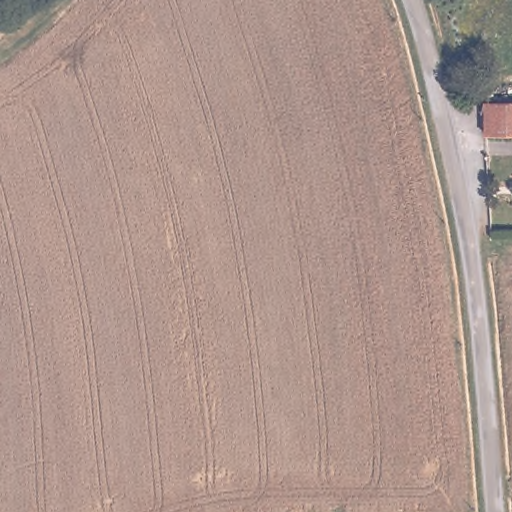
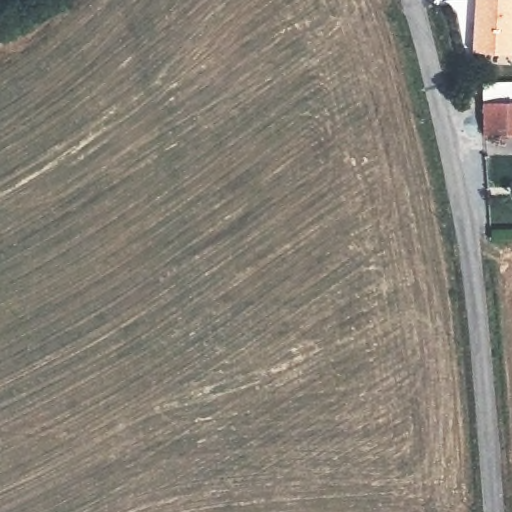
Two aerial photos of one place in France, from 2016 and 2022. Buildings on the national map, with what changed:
new [(512,51),(474,49),(476,0),(512,0),(512,51)]
unchanged [(483,101),(512,101),(512,130),(484,130),(483,101)]

